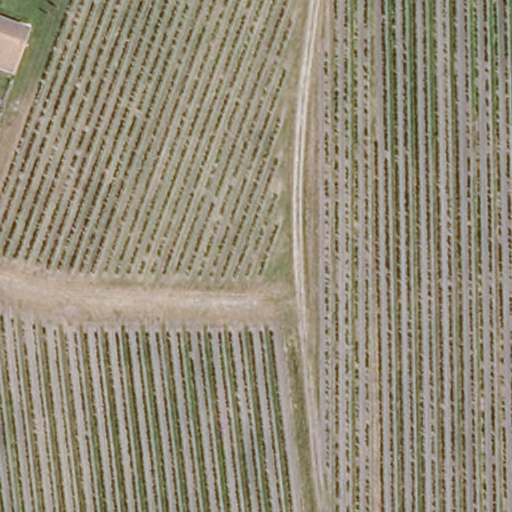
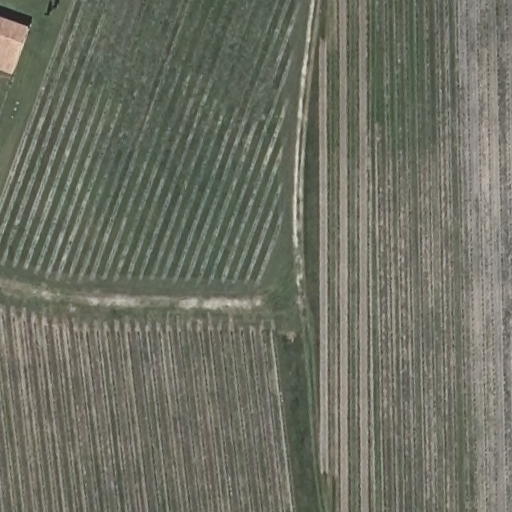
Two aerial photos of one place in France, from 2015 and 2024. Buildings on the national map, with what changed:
unchanged [(27,27),(12,72),(0,67),(0,17),(27,27)]

